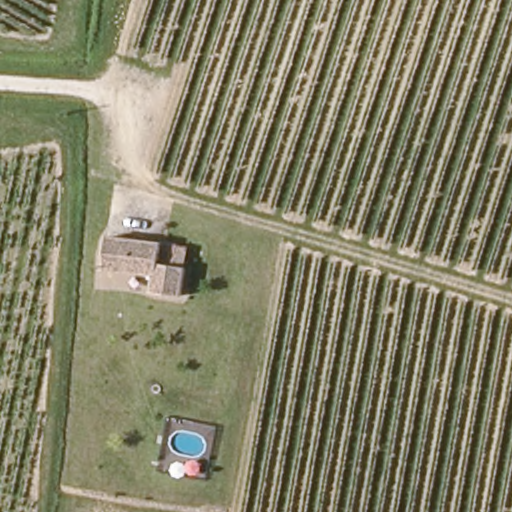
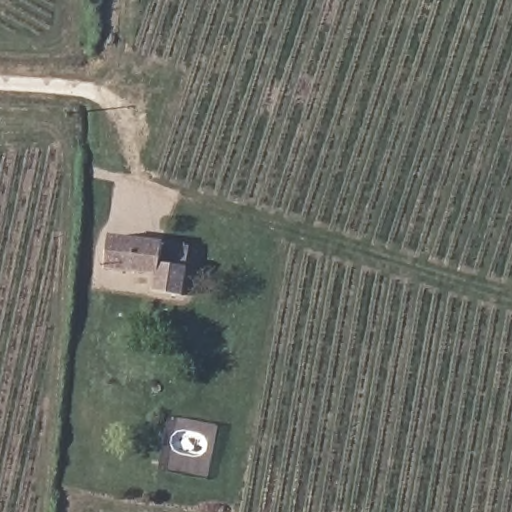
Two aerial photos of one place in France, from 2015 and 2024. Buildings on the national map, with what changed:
unchanged [(161,242),(160,258),(183,263),(180,295),(154,290),(155,269),(108,263),(111,233),(161,242)]

